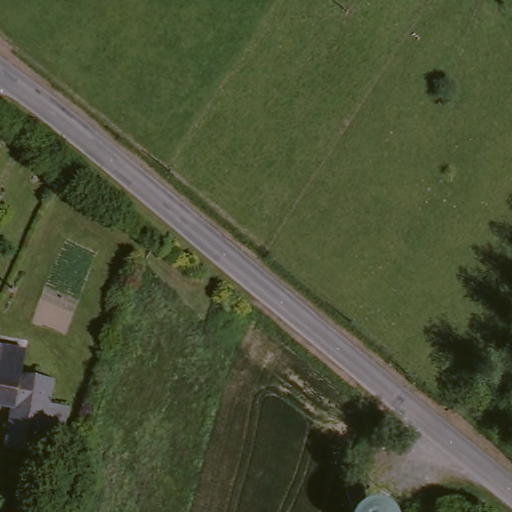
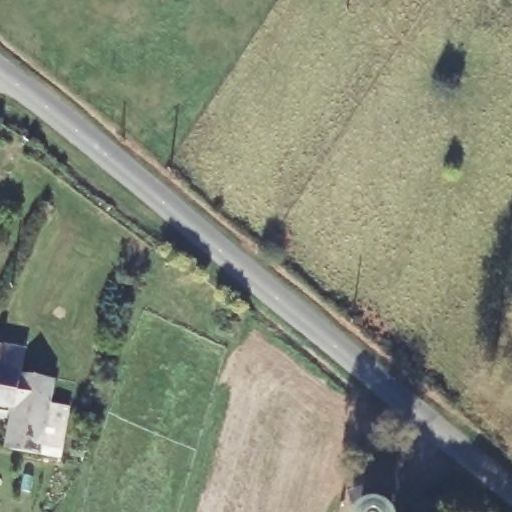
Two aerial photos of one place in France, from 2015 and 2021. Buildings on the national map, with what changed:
unchanged [(32,371),(63,377),(60,400),(74,402),(77,403),(70,448),(51,445),(44,480),(37,478),(34,494),(16,491),(23,442),(16,441),(22,403),(0,400),(0,335),(36,340),(32,371)]

